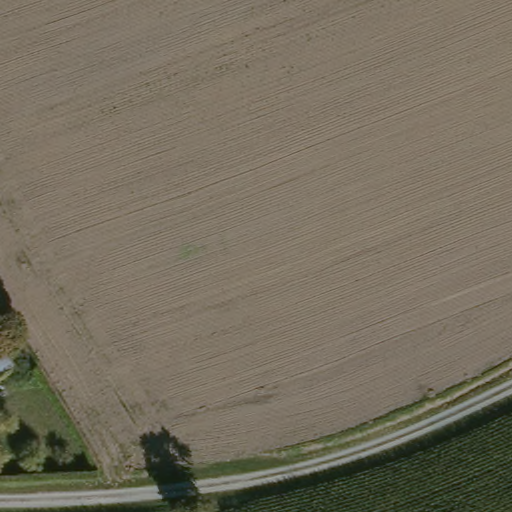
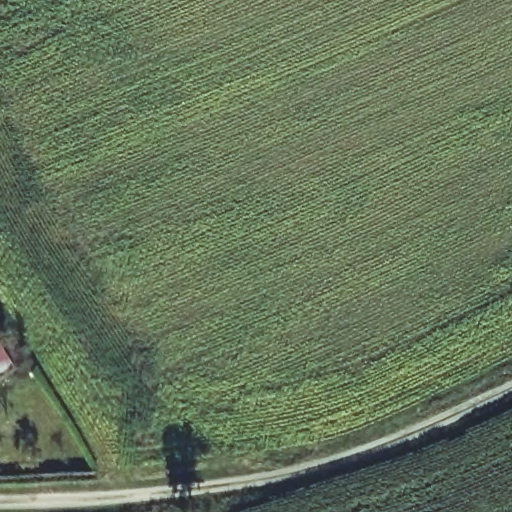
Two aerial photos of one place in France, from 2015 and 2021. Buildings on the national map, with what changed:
unchanged [(14,371),(0,379),(0,349),(14,371)]

